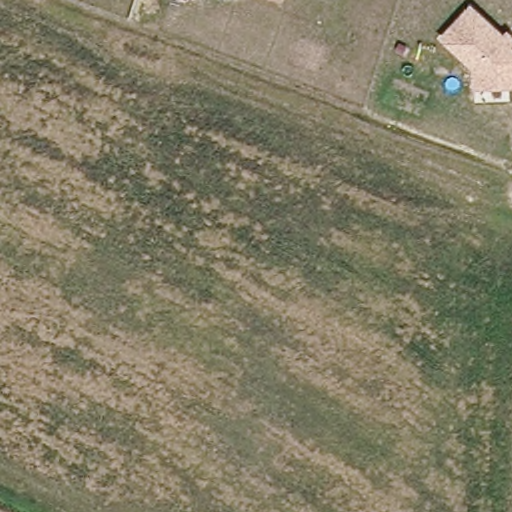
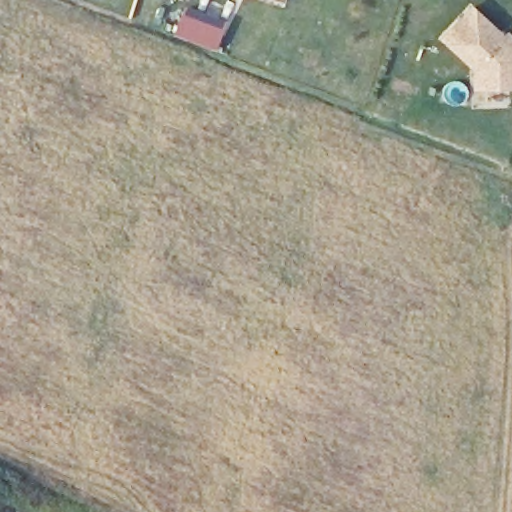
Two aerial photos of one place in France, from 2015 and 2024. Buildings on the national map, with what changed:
unchanged [(509,31),(512,34),(512,90),(470,90),(470,70),(439,36),(469,6),(502,36),(509,31)]
new [(172,36),(182,7),(226,24),(215,52),(172,36)]

